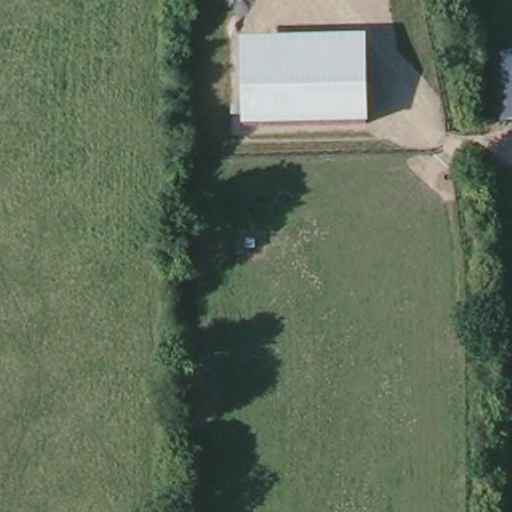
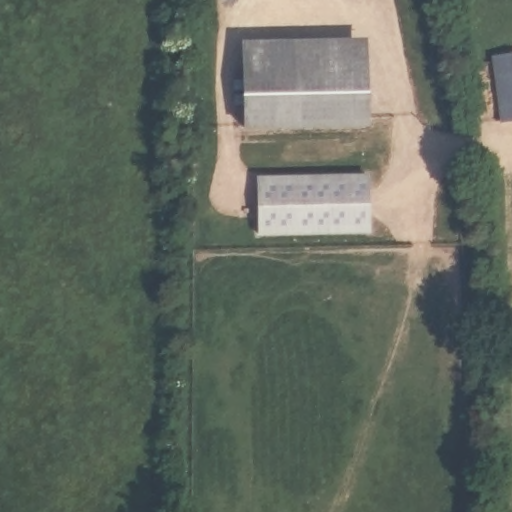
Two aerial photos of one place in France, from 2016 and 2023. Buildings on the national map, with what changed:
unchanged [(368,125),(242,127),(240,42),(364,38),(368,125)]
unchanged [(512,121),(502,122),(492,57),(512,56),(512,121)]
new [(256,169),(367,172),(367,242),(254,245),(256,169)]

